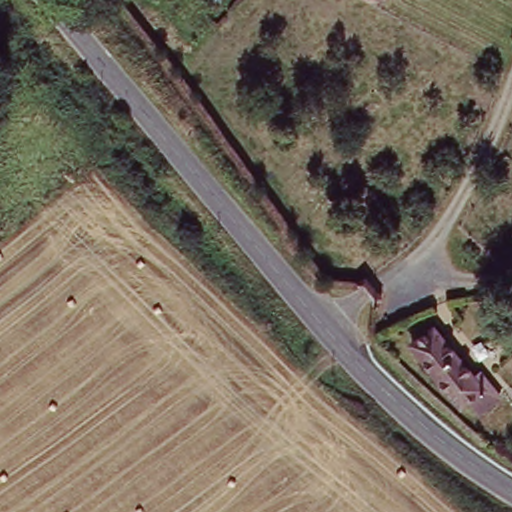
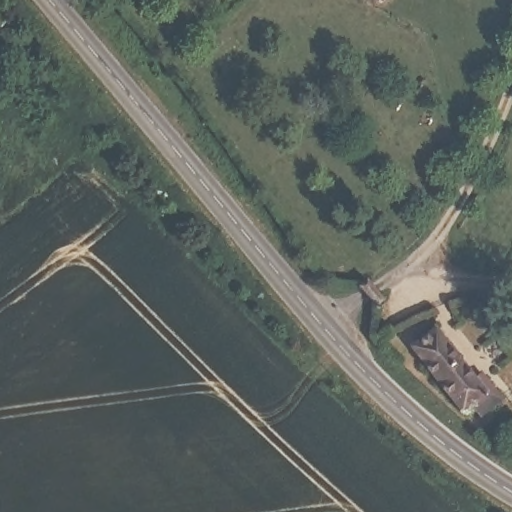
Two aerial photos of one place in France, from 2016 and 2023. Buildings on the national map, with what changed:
unchanged [(429,330),(465,374),(472,367),(497,399),(474,417),(465,404),(459,408),(409,348),(429,330)]

